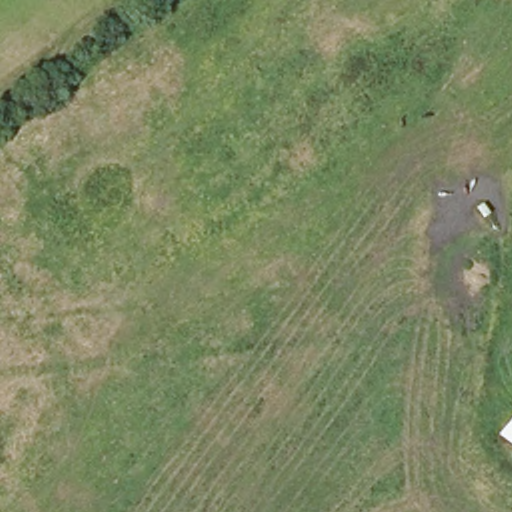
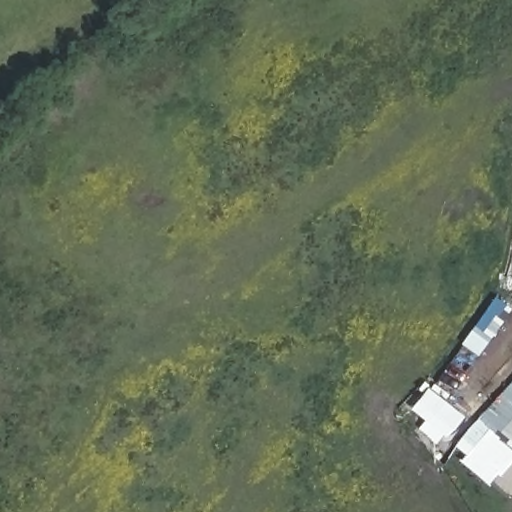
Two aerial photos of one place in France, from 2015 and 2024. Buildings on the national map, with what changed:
new [(494,297),(511,308),(477,356),(460,344),(494,297)]
new [(465,455),(454,446),(463,433),(476,419),(512,378),(512,416),(497,433),(512,446),(512,461),(500,477),(498,476),(490,487),(460,462),(465,455)]
new [(427,387),(464,417),(445,437),(410,410),(427,387)]
unchanged [(512,416),(512,446),(497,433),(512,416)]

